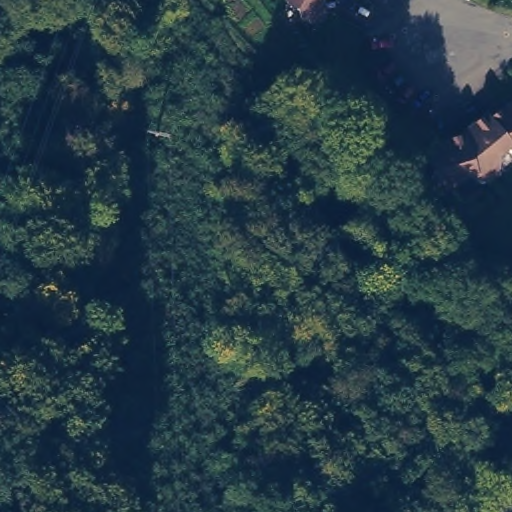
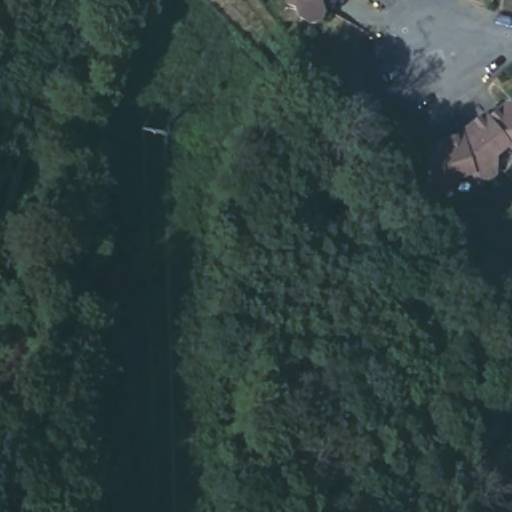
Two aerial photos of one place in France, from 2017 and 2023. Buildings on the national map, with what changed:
unchanged [(295,12),(292,0),(327,0),(326,2),(320,6),(316,14),(295,12)]
unchanged [(466,180),(464,178),(457,179),(449,176),(443,161),(450,154),(447,149),(447,140),(453,139),(454,130),(457,130),(457,124),(476,122),(489,116),(485,110),(500,98),(505,103),(512,97),(512,158),(502,162),(499,165),(490,174),(466,180)]

